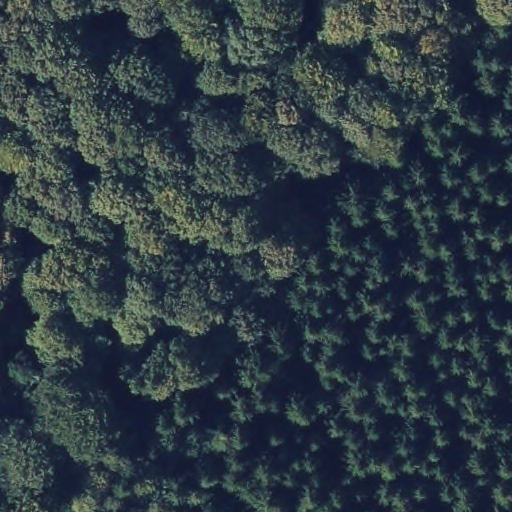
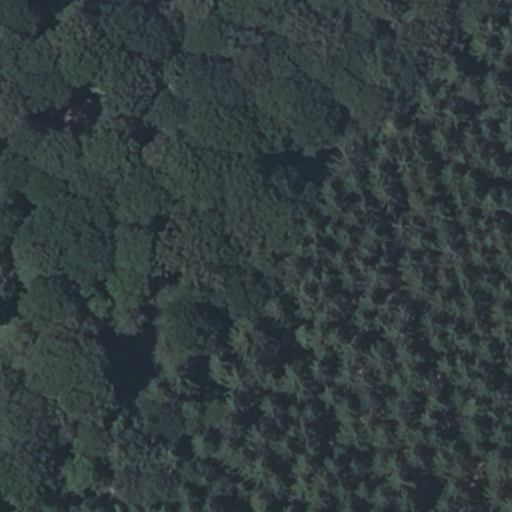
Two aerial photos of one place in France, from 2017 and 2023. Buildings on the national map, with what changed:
unchanged [(157,312),(140,356),(106,339),(126,298),(157,312)]

